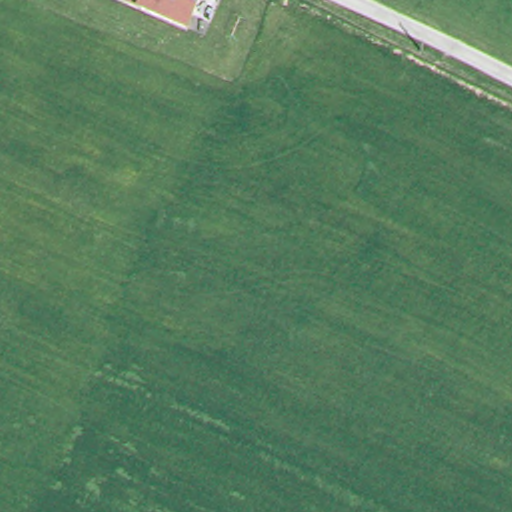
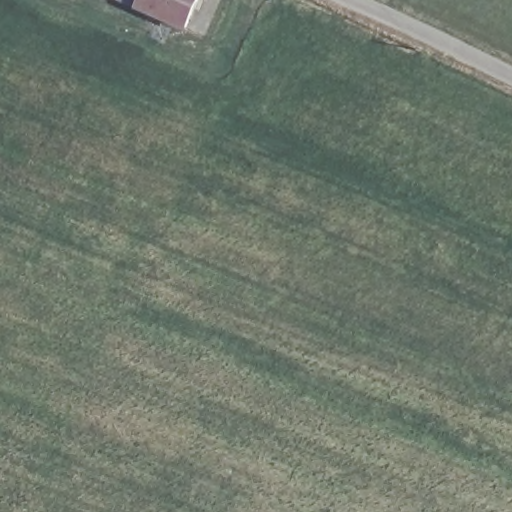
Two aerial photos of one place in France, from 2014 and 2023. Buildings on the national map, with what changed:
unchanged [(193,27),(131,0),(205,0),(193,27)]

